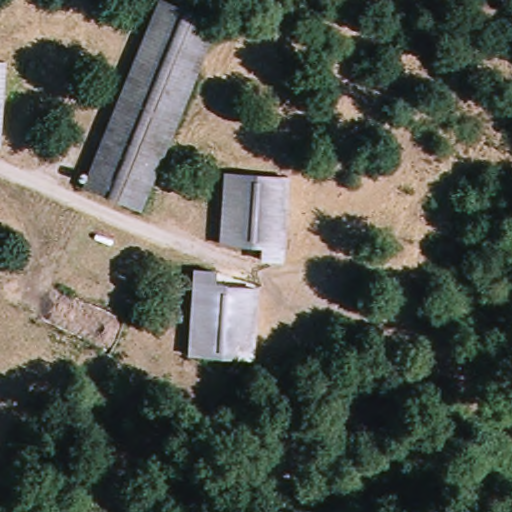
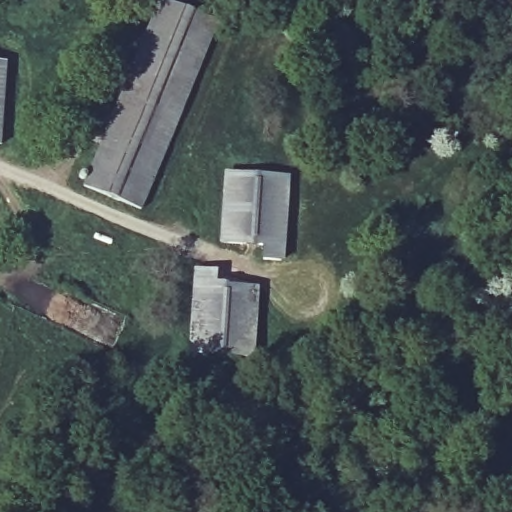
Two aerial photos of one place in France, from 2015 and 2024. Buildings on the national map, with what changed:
unchanged [(79,183),(158,0),(166,0),(214,21),(176,110),(135,207),(79,183)]
unchanged [(280,179),(274,261),(256,260),(256,247),(215,244),(220,174),(280,179)]
unchanged [(249,358),(188,353),(194,271),(212,272),(211,285),(254,289),(249,358)]

